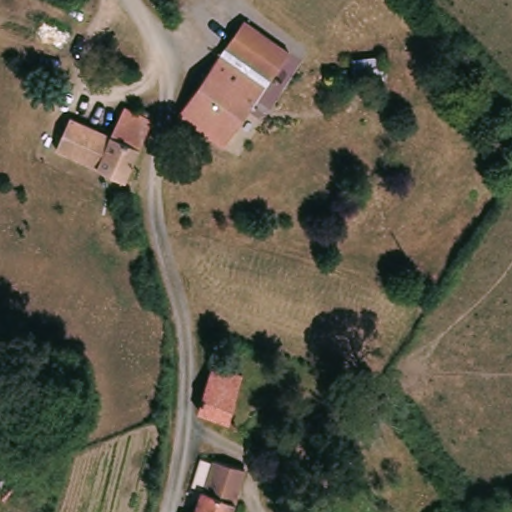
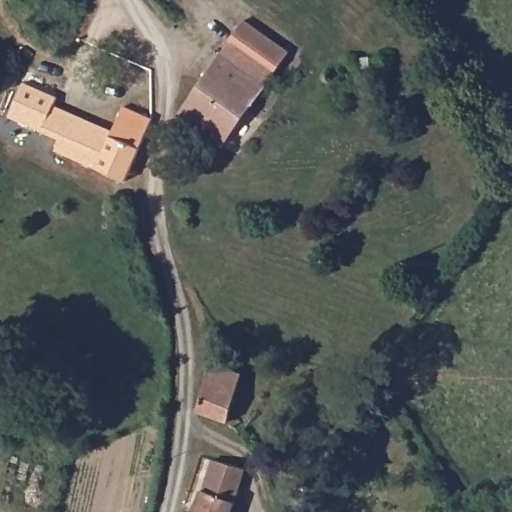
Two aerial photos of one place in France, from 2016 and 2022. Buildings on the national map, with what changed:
unchanged [(250,21),(291,54),(227,144),(185,115),(250,21)]
new [(9,117),(24,82),(58,96),(54,105),(120,131),(117,138),(105,132),(75,117),(64,140),(9,117)]
unchanged [(157,118),(128,184),(126,182),(102,171),(59,150),(75,117),(105,132),(117,138),(123,125),(131,110),(131,109),(132,107),(157,118)]
unchanged [(196,405),(212,360),(244,372),(228,416),(196,405)]
unchanged [(211,488),(222,452),(252,462),(234,512),(185,512),(187,507),(197,511),(206,486),(211,488)]

